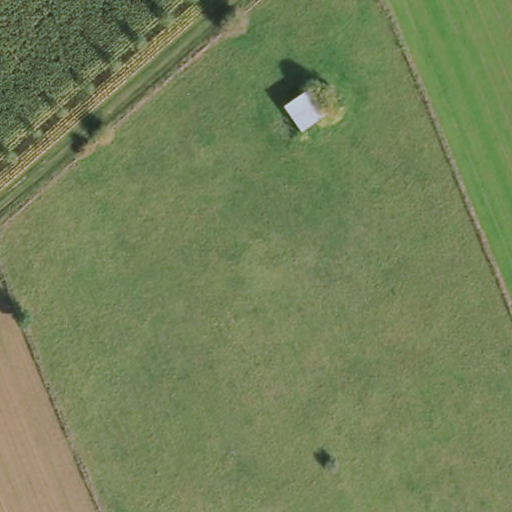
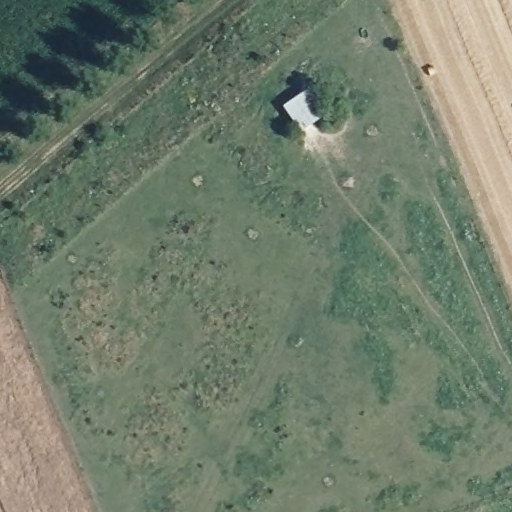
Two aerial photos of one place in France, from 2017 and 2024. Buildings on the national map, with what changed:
unchanged [(310,86),(329,113),(301,131),(282,105),(310,86)]

